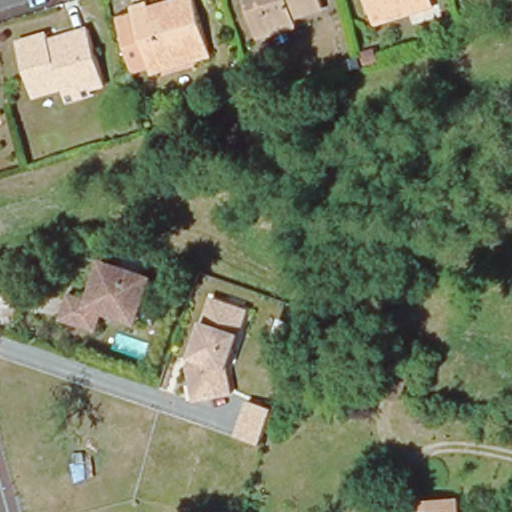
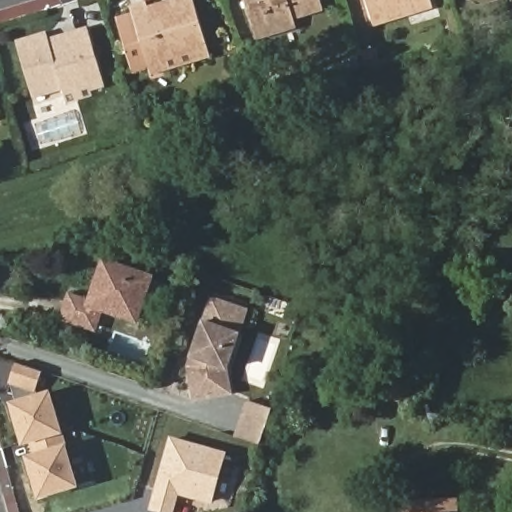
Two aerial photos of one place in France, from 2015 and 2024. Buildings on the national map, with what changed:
unchanged [(158,70),(156,62),(138,68),(125,21),(123,15),(140,10),(139,6),(155,1),(158,10),(189,0),(202,0),(215,44),(217,52),(158,70)]
unchanged [(322,2),(291,11),(294,21),(256,33),(246,0),(321,0),(322,2)]
unchanged [(433,1),(375,19),(369,0),(433,0),(433,1)]
unchanged [(103,80),(64,91),(61,81),(32,90),(17,44),(47,35),(50,42),(89,30),(103,80)]
unchanged [(149,279),(134,322),(99,310),(92,330),(62,320),(68,298),(89,305),(103,264),(149,279)]
unchanged [(187,374),(186,365),(209,296),(245,308),(236,333),(229,330),(217,367),(218,375),(226,374),(228,388),(229,391),(192,398),(187,374)]
unchanged [(392,355),(410,361),(399,397),(381,392),(392,355)]
new [(11,379),(17,361),(43,370),(36,388),(38,396),(17,402),(11,379)]
new [(49,393),(59,431),(23,441),(13,403),(49,393)]
unchanged [(275,408),(261,443),(238,435),(251,400),(275,408)]
new [(74,485),(38,495),(28,457),(36,455),(31,439),(59,431),(74,485)]
new [(227,453),(213,502),(177,492),(171,512),(154,512),(152,511),(173,438),(227,453)]
unchanged [(448,497),(448,512),(408,512),(408,496),(448,497)]

